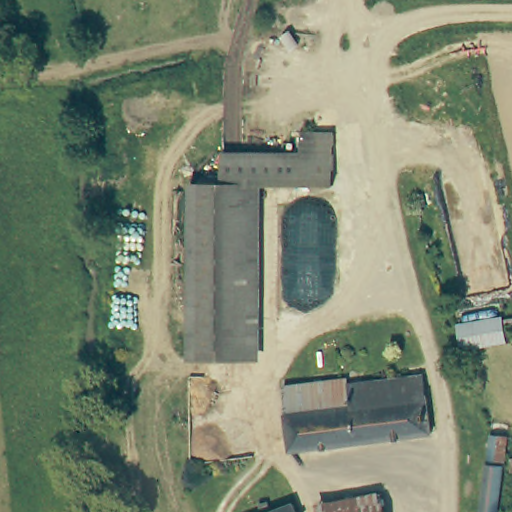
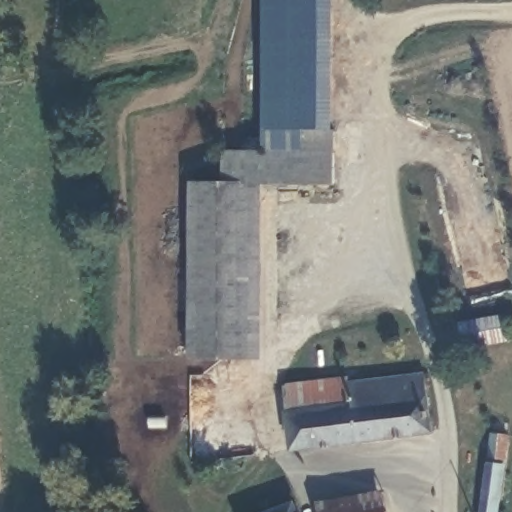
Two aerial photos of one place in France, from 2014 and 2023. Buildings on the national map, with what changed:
new [(262,132),(264,0),(331,0),(330,130),(302,131),(302,152),(262,152),(262,132)]
unchanged [(224,182),(224,152),(302,152),(302,131),(334,130),(333,182),(252,182),(224,182)]
unchanged [(252,357),(192,357),(194,181),(224,182),(252,182),(252,357)]
unchanged [(462,349),(457,322),(501,315),(507,343),(462,349)]
unchanged [(344,407),(282,412),(279,382),(341,376),(342,384),(344,407)]
unchanged [(282,412),(344,407),(342,384),(401,377),(423,377),(427,433),(287,448),(282,412)]
unchanged [(510,436),(498,512),(482,512),(494,434),(510,436)]
unchanged [(383,490),(387,512),(321,512),(319,500),(383,490)]
unchanged [(293,507),(295,512),(263,512),(291,501),(293,507)]

